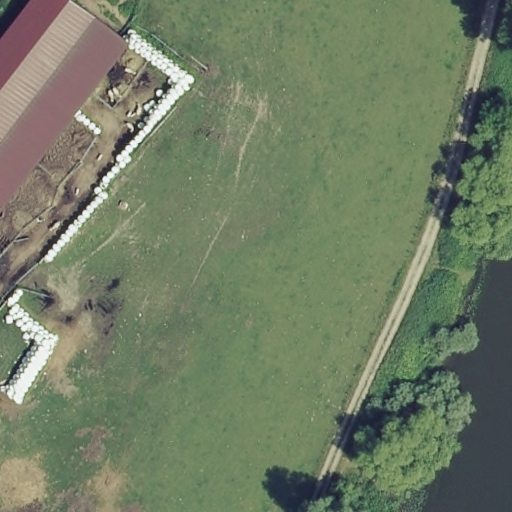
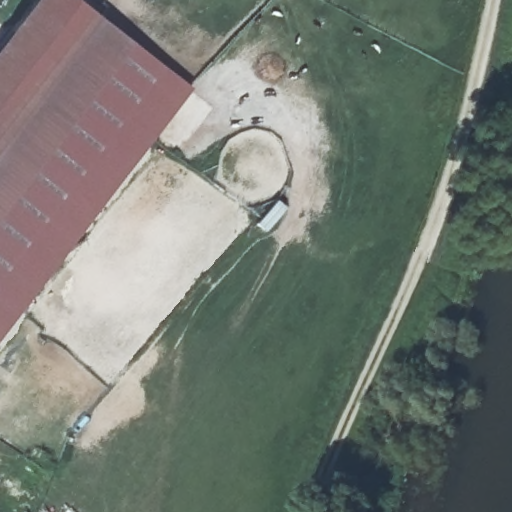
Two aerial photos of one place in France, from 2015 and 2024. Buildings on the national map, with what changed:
unchanged [(78,0),(129,39),(0,207),(0,47),(36,0),(78,0)]
new [(191,91),(0,340),(0,207),(129,39),(191,91)]

